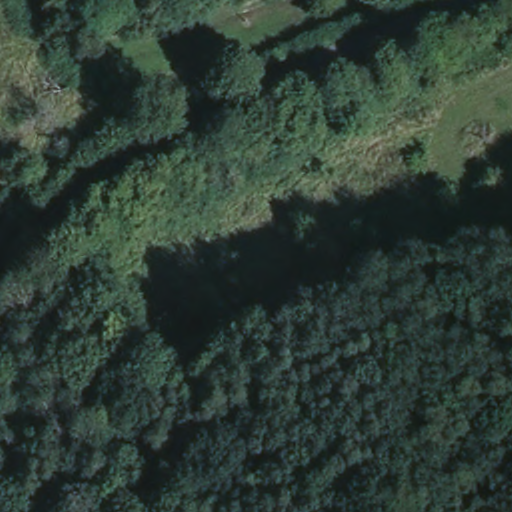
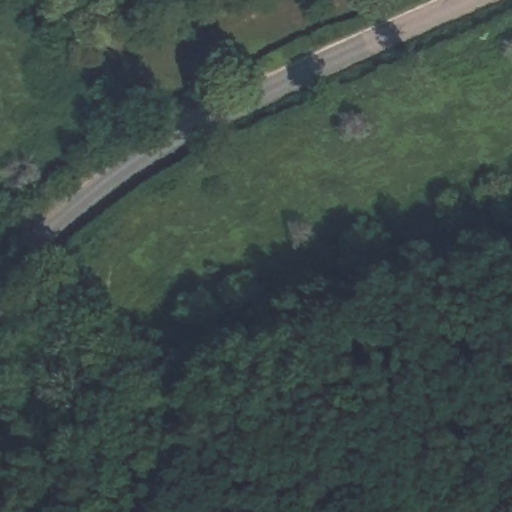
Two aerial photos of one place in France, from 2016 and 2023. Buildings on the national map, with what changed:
[]

